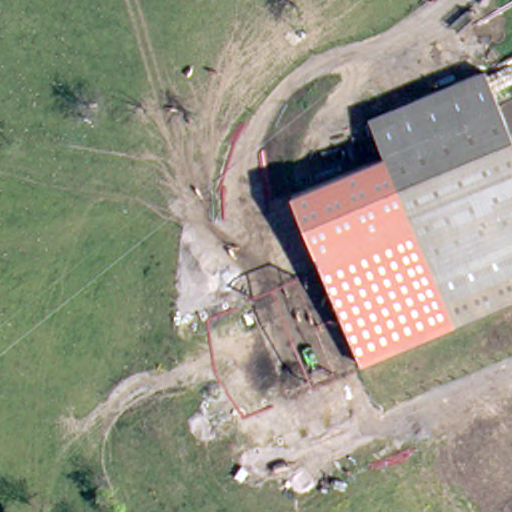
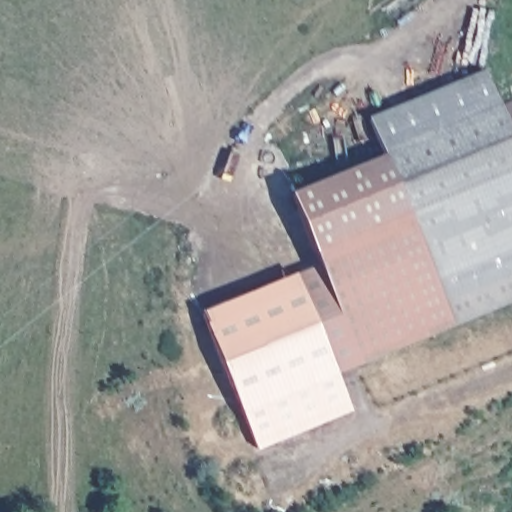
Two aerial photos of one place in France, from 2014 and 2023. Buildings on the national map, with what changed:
unchanged [(475,77),(489,71),(504,109),(512,106),(512,303),(455,326),(406,203),(395,175),(377,130),(372,118),(475,77)]
unchanged [(388,159),(455,326),(361,367),(289,193),(388,159)]
new [(361,367),(337,376),(352,409),(256,449),(200,313),(294,274),(319,265),(361,367)]

